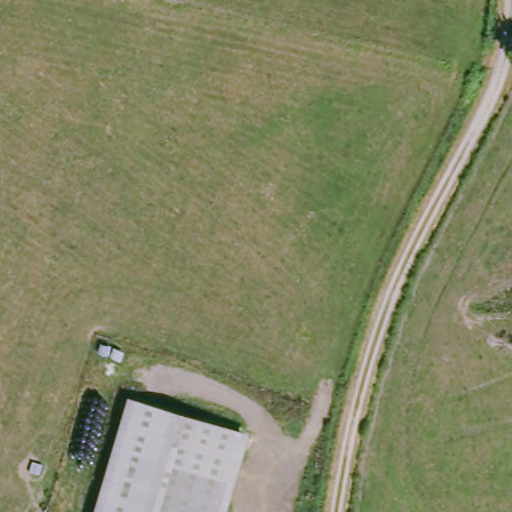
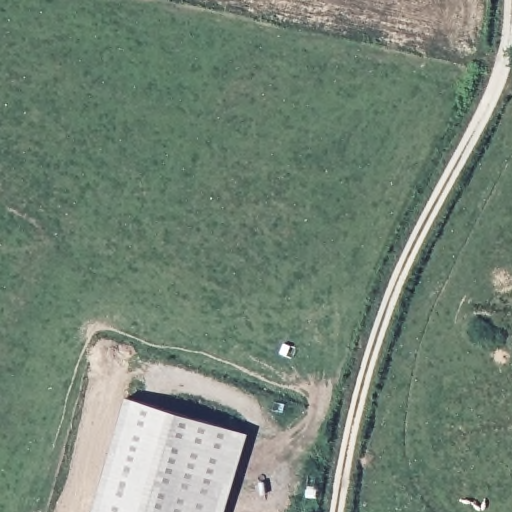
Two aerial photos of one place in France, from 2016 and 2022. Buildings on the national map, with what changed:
unchanged [(243,430),(215,512),(98,512),(137,395),(243,430)]

